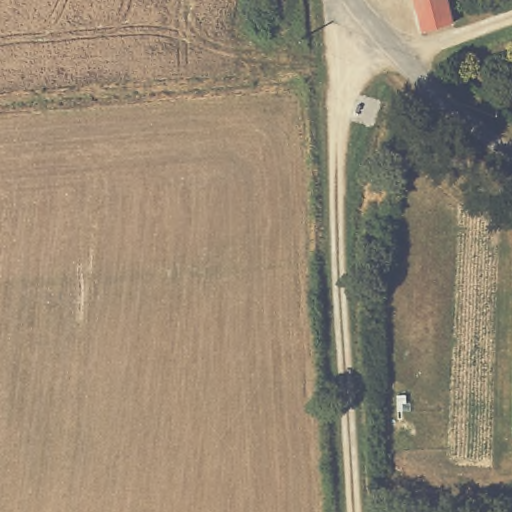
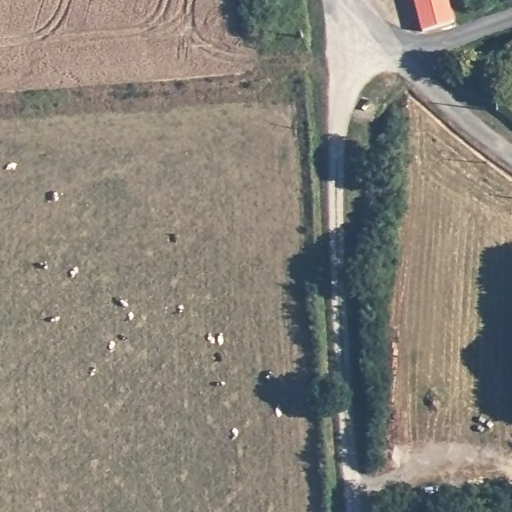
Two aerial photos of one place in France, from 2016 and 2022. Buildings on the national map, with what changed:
unchanged [(454,22),(424,31),(416,0),(449,0),(453,16),(454,22)]

